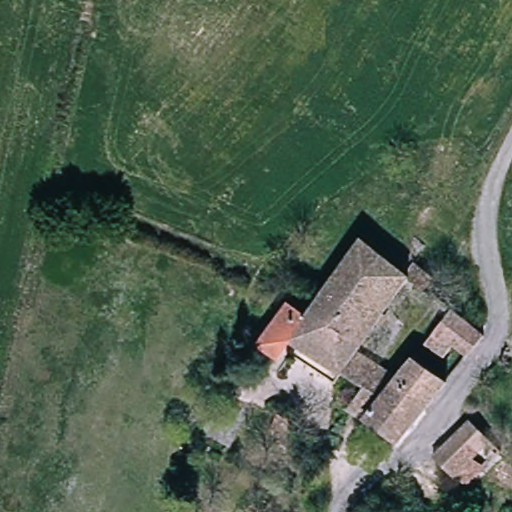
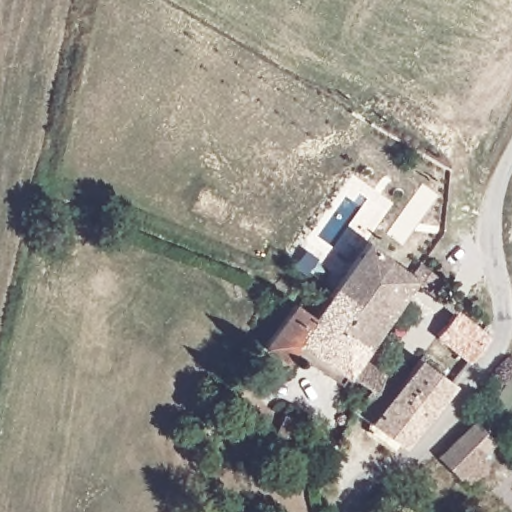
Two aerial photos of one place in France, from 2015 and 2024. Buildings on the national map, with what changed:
unchanged [(408,278),(415,267),(434,281),(424,295),(411,286),(362,357),(339,341),(353,316),(325,300),(363,245),(408,278)]
unchanged [(325,300),(353,316),(339,341),(362,357),(346,382),(293,347),(308,325),(318,308),(325,300)]
unchanged [(451,309),(486,332),(468,356),(454,345),(446,356),(428,343),(451,309)]
unchanged [(258,356),(286,311),(308,325),(293,347),(276,369),(258,356)]
unchanged [(359,397),(351,393),(356,388),(346,382),(362,357),(399,381),(367,423),(351,415),(349,413),(359,397)]
unchanged [(400,447),(367,423),(399,381),(414,361),(448,387),(400,447)]
unchanged [(281,434),(286,415),(299,418),(294,437),(281,434)]
unchanged [(459,483),(431,457),(465,421),(494,449),(476,468),(481,472),(470,486),(463,480),(459,483)]

